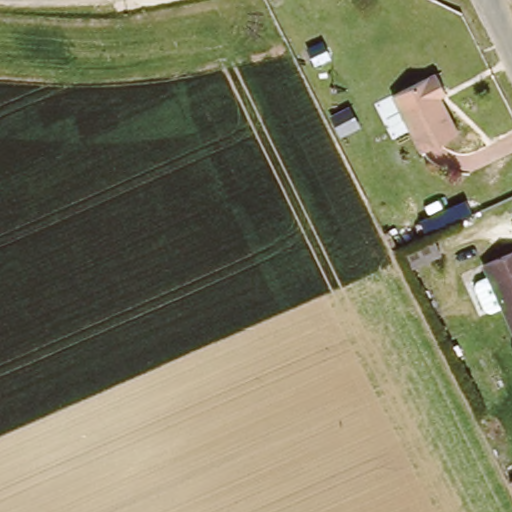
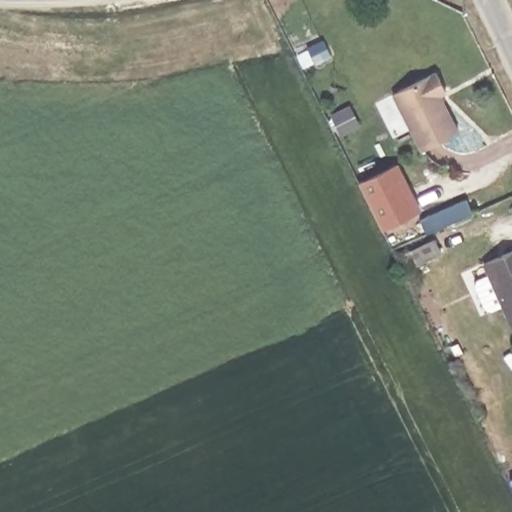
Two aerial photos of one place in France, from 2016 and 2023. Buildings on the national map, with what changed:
new [(321,41),(327,55),(311,63),(305,49),(321,41)]
unchanged [(435,74),(445,94),(440,96),(457,133),(418,151),(391,95),(435,74)]
new [(384,231),(359,181),(398,161),(422,210),(384,231)]
unchanged [(423,226),(468,204),(475,218),(430,239),(423,226)]
unchanged [(512,327),(482,266),(512,252),(512,327)]
unchanged [(512,473),(512,482),(508,475),(512,473)]

